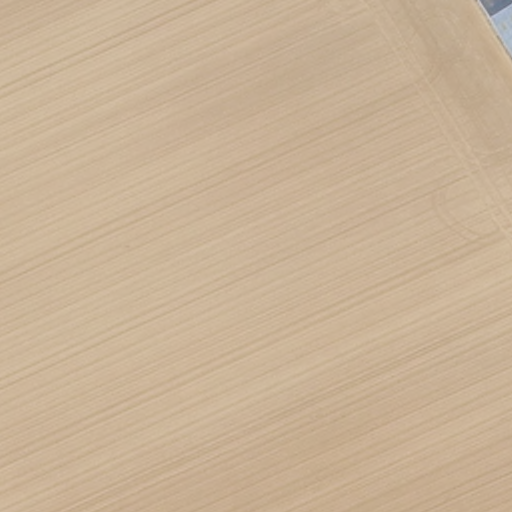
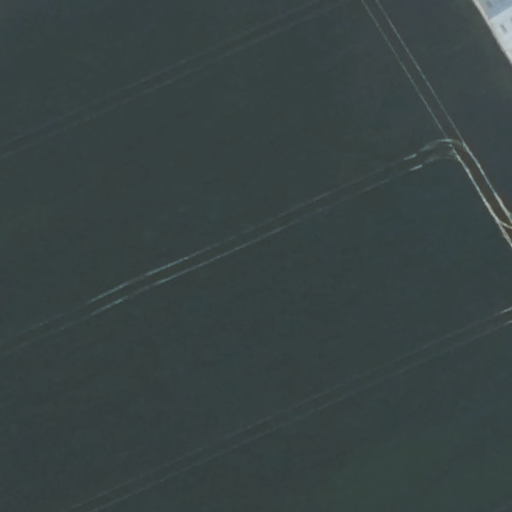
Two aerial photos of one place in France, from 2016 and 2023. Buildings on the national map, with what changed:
unchanged [(512,0),(512,72),(471,0),(512,0)]

